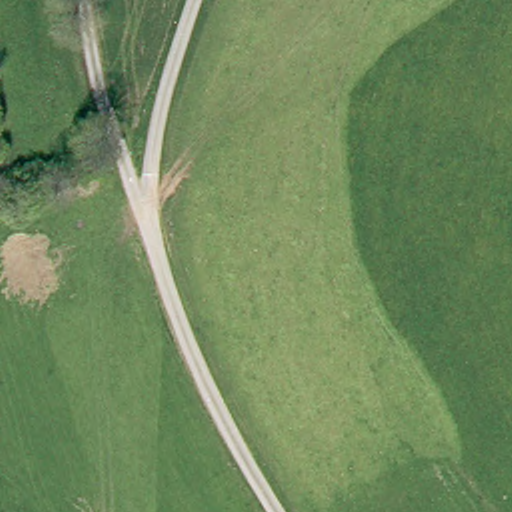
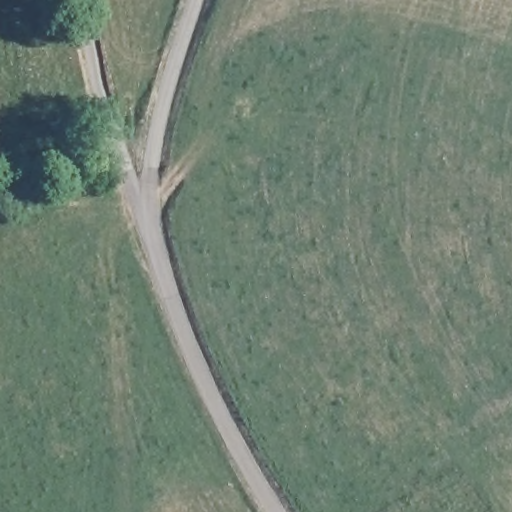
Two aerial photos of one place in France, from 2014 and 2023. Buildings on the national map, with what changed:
[]

